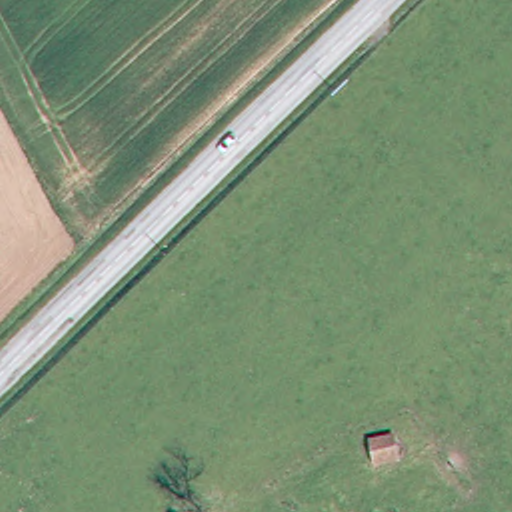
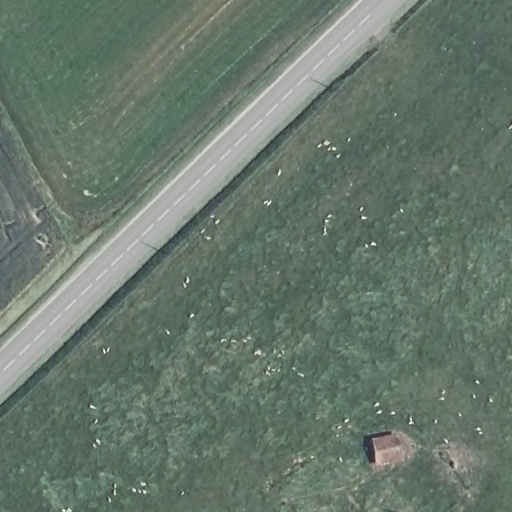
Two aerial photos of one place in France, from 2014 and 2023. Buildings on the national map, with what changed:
unchanged [(363,458),(361,423),(402,421),(403,452),(363,458)]

